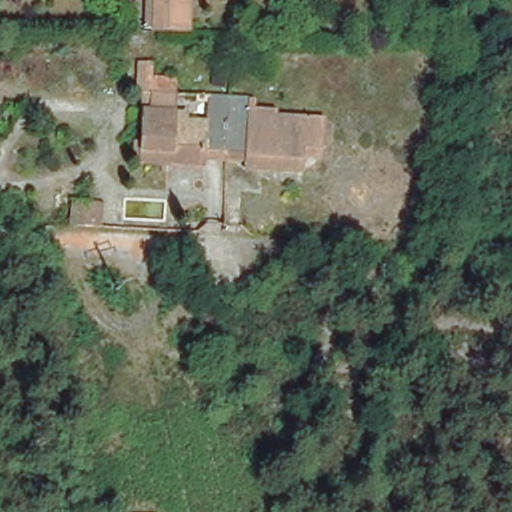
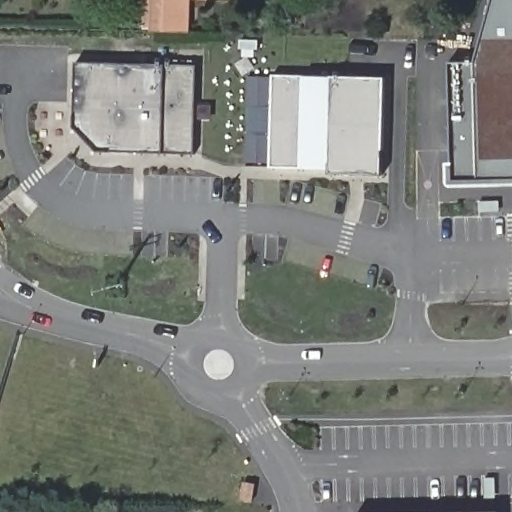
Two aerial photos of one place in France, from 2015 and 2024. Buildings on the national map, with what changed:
unchanged [(150,0),(205,0),(204,1),(188,1),(187,32),(158,31),(149,31),(150,0)]
new [(474,61),(491,0),(512,0),(512,181),(452,183),(449,62),(474,61)]
new [(197,65),(195,155),(98,152),(74,127),(76,62),(197,65)]
new [(383,177),(371,177),(371,173),(341,172),(340,176),(329,175),(329,171),(270,168),(273,75),(386,78),(383,177)]
demolished [(150,129),(159,130),(160,111),(243,115),(242,137),(287,140),(289,118),(317,119),(315,157),(298,155),(296,170),(239,168),(239,162),(210,159),(209,166),(192,165),(149,162),(150,129)]
demolished [(99,230),(69,228),(70,201),(86,203),(85,215),(100,217),(99,230)]

